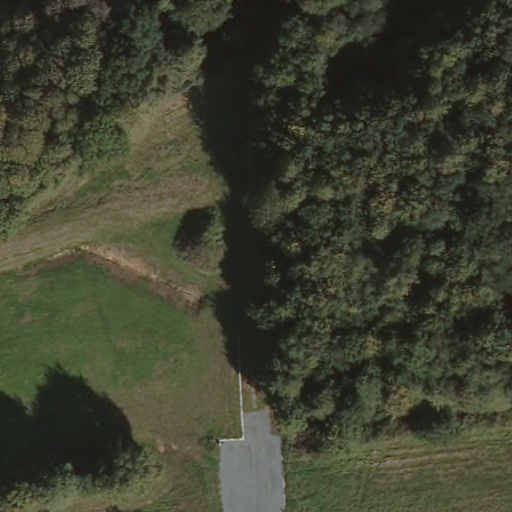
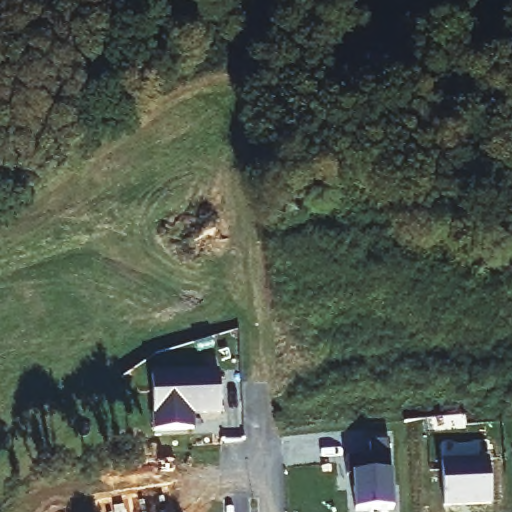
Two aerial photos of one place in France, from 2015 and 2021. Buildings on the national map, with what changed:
new [(193,431),(155,433),(152,377),(219,374),(221,413),(203,414),(192,415),(193,431)]
new [(345,458),(370,456),(369,440),(389,439),(393,510),(370,512),(354,512),(354,491),(346,476),(345,458)]
new [(490,465),(491,508),(443,510),(442,466),(490,465)]

